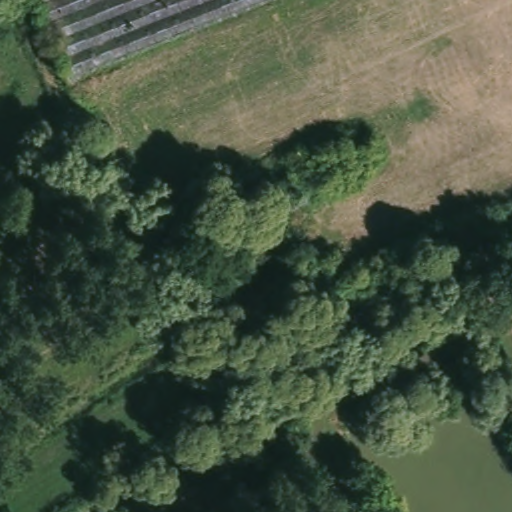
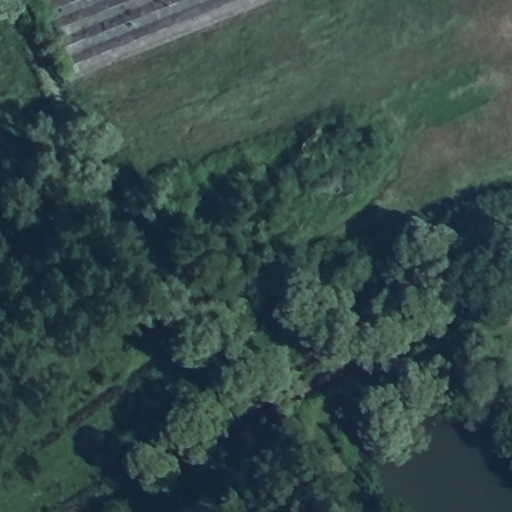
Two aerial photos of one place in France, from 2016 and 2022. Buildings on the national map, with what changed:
unchanged [(76,99),(32,0),(297,0),(76,99)]

